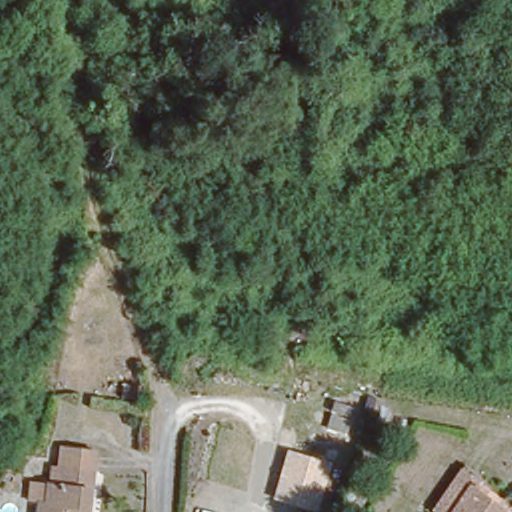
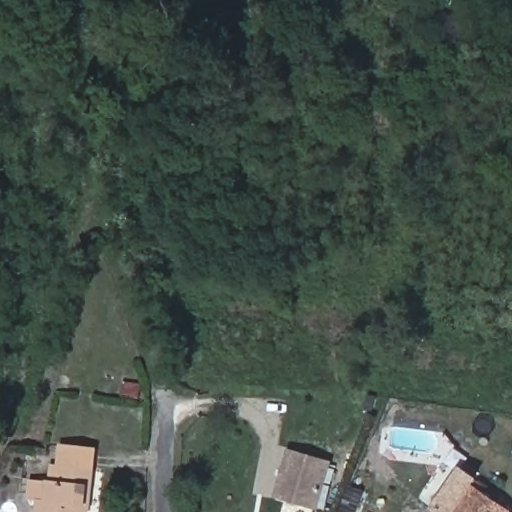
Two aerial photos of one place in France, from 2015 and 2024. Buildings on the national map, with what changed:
unchanged [(330,397),(357,406),(346,440),(319,431),(330,397)]
unchanged [(86,505),(86,512),(43,512),(44,501),(30,498),(34,478),(51,481),(54,464),(60,465),(63,443),(97,447),(94,485),(92,506),(86,505)]
unchanged [(272,497),(286,447),(331,460),(316,508),(272,497)]
unchanged [(435,510),(462,470),(477,481),(489,489),(484,496),(505,512),(438,512),(435,510)]

